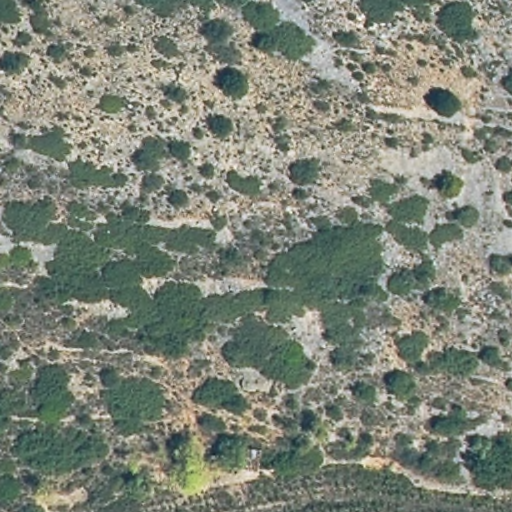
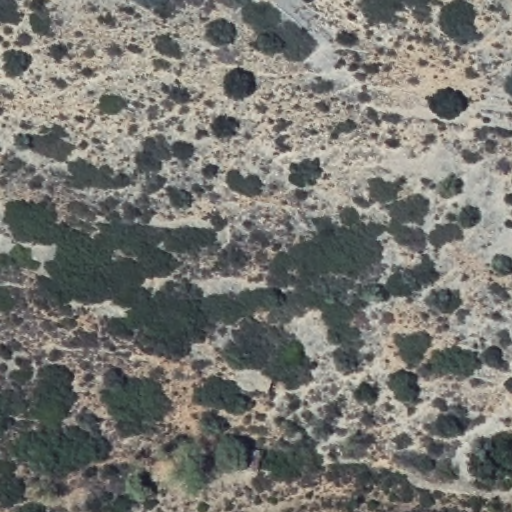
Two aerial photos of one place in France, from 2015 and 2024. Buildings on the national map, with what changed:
unchanged [(258,466),(229,463),(231,442),(261,446),(258,466)]

